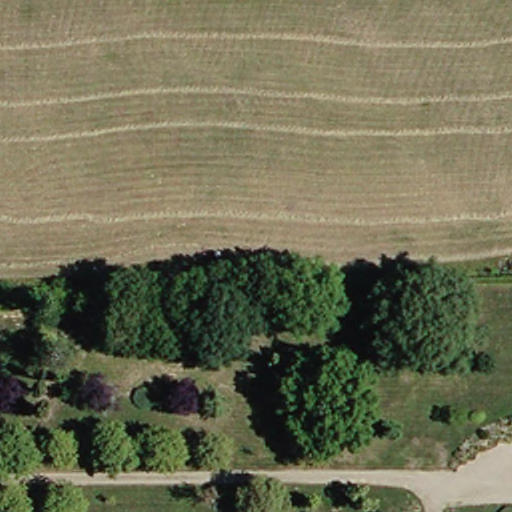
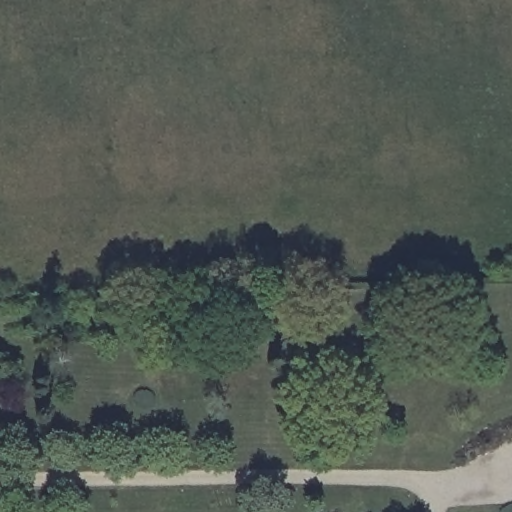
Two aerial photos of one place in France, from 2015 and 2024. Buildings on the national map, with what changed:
[]

